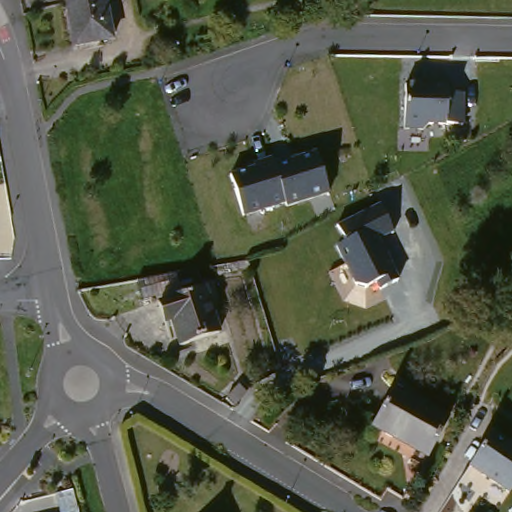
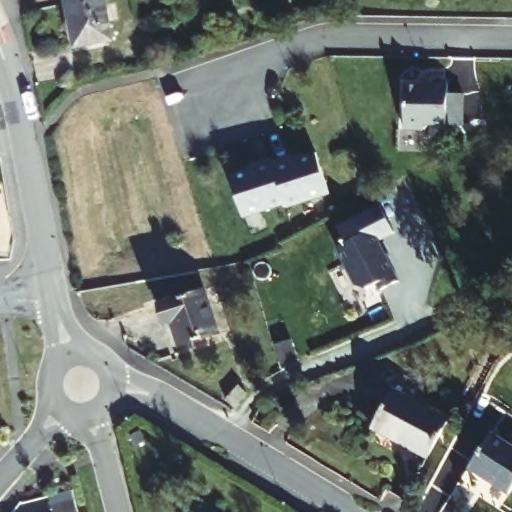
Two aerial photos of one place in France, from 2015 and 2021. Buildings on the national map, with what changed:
unchanged [(80,40),(73,0),(113,0),(120,33),(80,40)]
unchanged [(396,86),(420,86),(420,83),(438,83),(438,93),(455,93),(455,125),(420,125),(415,130),(396,130),(396,86)]
unchanged [(280,205),(279,201),(237,214),(224,173),(249,166),(248,162),(266,156),(267,160),(285,155),(285,158),(310,151),(323,191),(280,205)]
unchanged [(379,291),(375,284),(366,288),(352,284),(335,248),(345,242),(337,228),(379,206),(394,235),(380,241),(397,279),(379,291)]
unchanged [(174,328),(165,302),(170,300),(167,294),(151,299),(147,286),(185,273),(204,267),(210,287),(212,286),(229,331),(190,342),(185,325),(174,328)]
unchanged [(501,280),(512,284),(512,303),(510,308),(493,300),(501,280)]
unchanged [(245,369),(256,375),(246,393),(235,387),(245,369)]
unchanged [(453,412),(438,445),(433,455),(425,451),(426,448),(410,440),(397,437),(387,438),(376,430),(396,387),(453,412)]
unchanged [(512,481),(472,461),(492,427),(512,438),(512,481)]

